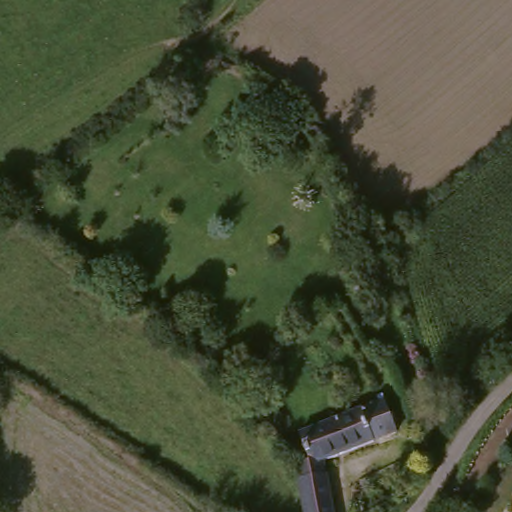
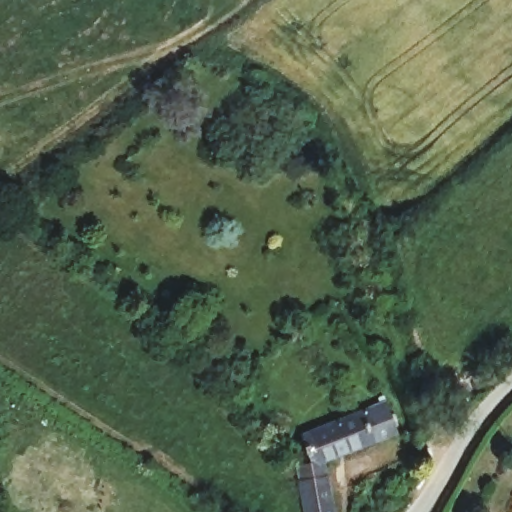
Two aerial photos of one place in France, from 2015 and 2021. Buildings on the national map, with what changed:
unchanged [(300,467),(316,464),(306,436),(391,402),(404,437),(331,466),(340,512),(309,512),(300,467)]

